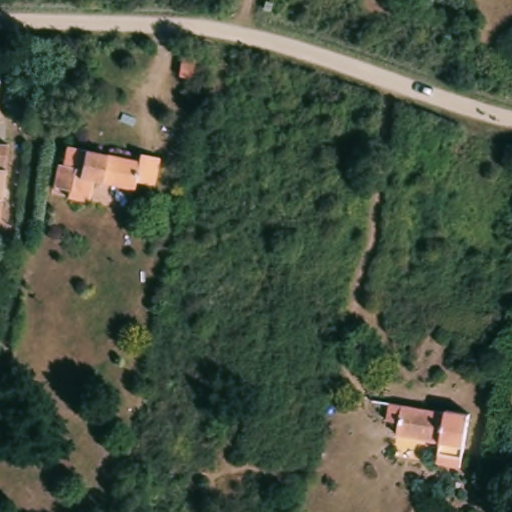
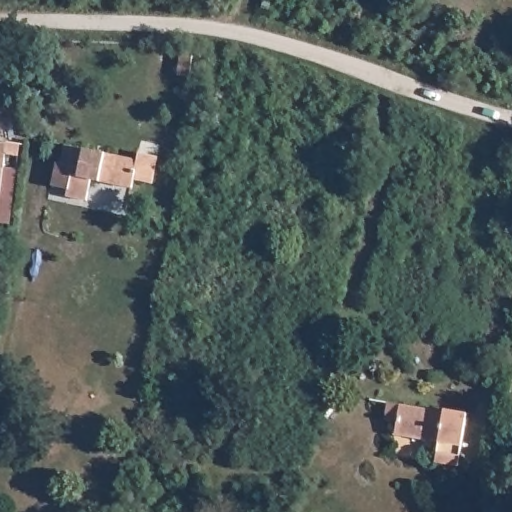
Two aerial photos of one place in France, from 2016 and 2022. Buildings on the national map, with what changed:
unchanged [(176,75),(180,54),(192,55),(189,77),(176,75)]
unchanged [(0,190),(0,138),(6,138),(3,162),(0,190)]
unchanged [(138,152),(158,157),(152,184),(133,179),(131,188),(90,180),(86,200),(65,196),(67,189),(51,185),(56,162),(60,163),(64,145),(137,160),(138,152)]
unchanged [(396,421),(384,419),(387,402),(443,412),(444,409),(467,412),(458,466),(434,462),(438,441),(394,433),(396,421)]

